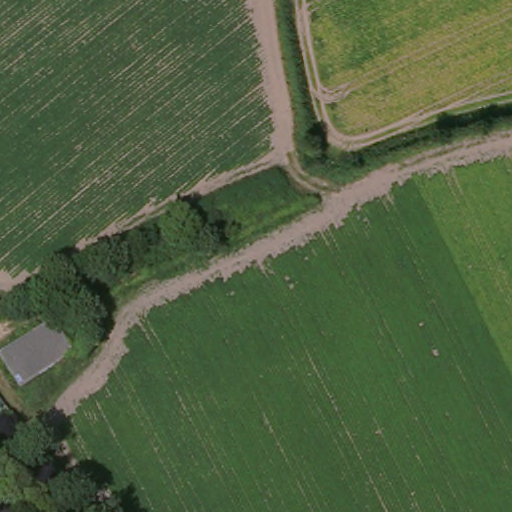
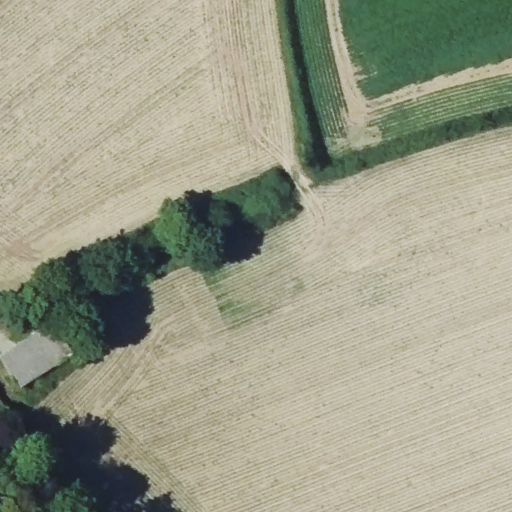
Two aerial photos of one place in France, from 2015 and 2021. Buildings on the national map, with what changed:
unchanged [(7,352),(53,323),(71,353),(26,381),(7,352)]

